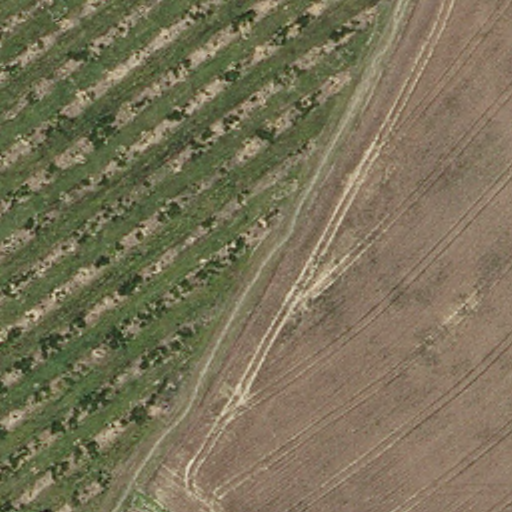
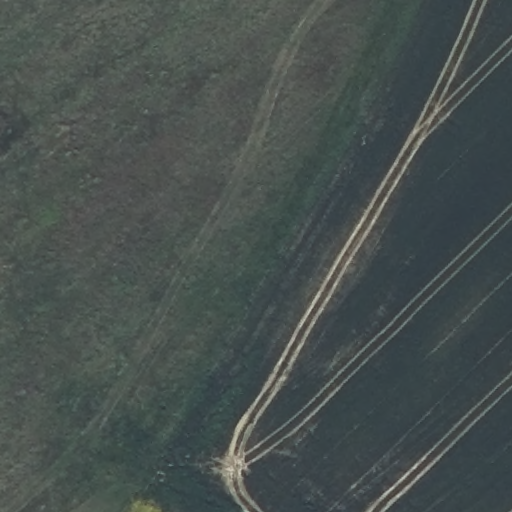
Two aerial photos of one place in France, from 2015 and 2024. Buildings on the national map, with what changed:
[]

